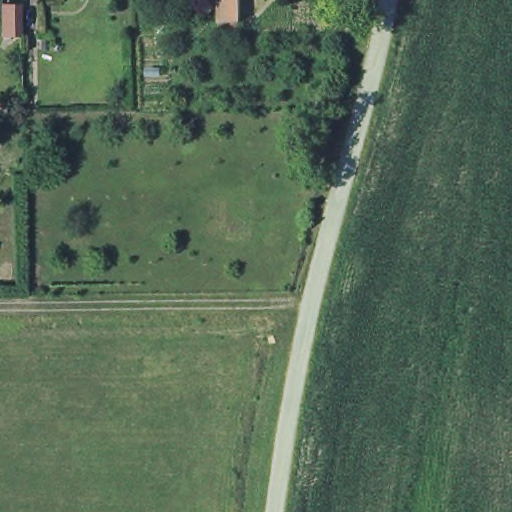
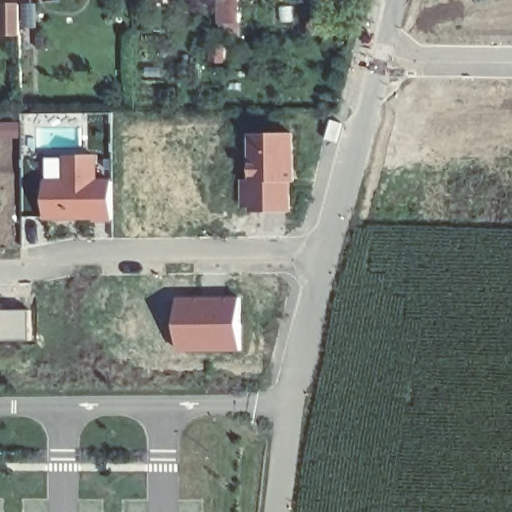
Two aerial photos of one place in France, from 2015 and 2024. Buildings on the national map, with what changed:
unchanged [(223,27),(223,0),(243,0),(243,27),(223,27)]
new [(20,36),(4,34),(3,1),(20,2),(20,36)]
new [(300,132),(296,210),(242,210),(240,180),(250,179),(251,132),(300,132)]
new [(47,157),(100,155),(100,180),(114,180),(114,220),(50,222),(47,157)]
new [(238,297),(241,353),(180,353),(180,299),(238,297)]
new [(2,301),(0,312),(33,311),(31,342),(0,343),(0,301),(2,301)]

